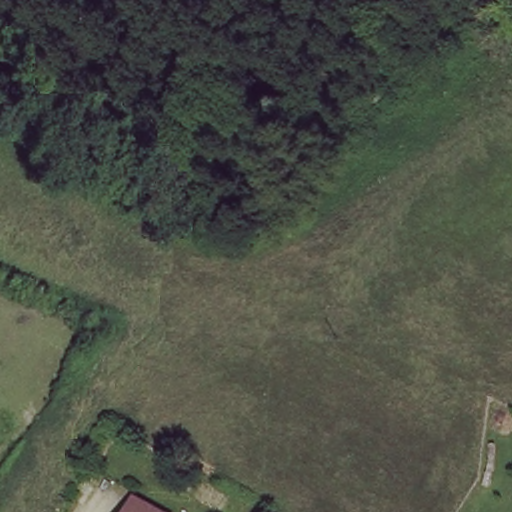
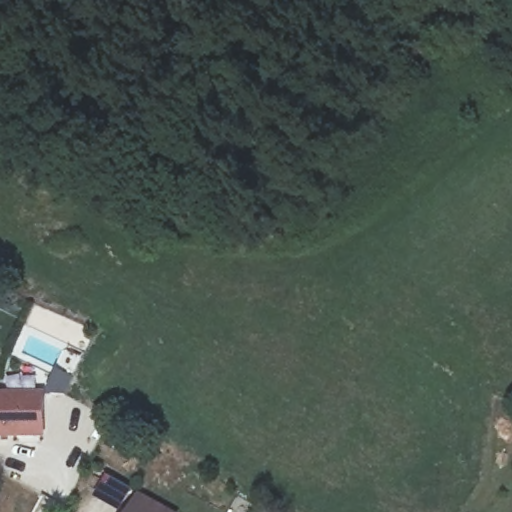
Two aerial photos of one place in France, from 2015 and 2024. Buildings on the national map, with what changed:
new [(45,390),(45,430),(0,430),(0,390),(45,390)]
unchanged [(130,496),(163,512),(124,512),(130,496)]

